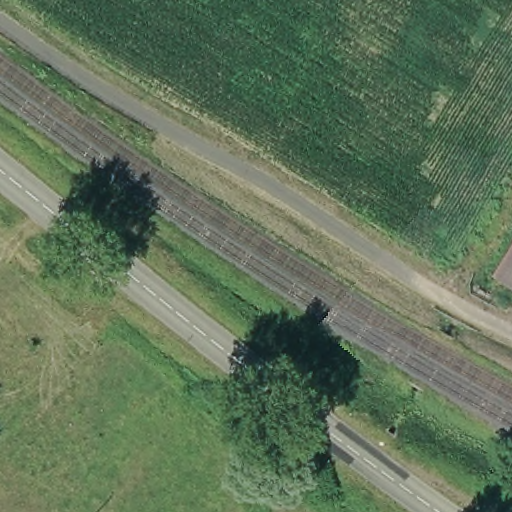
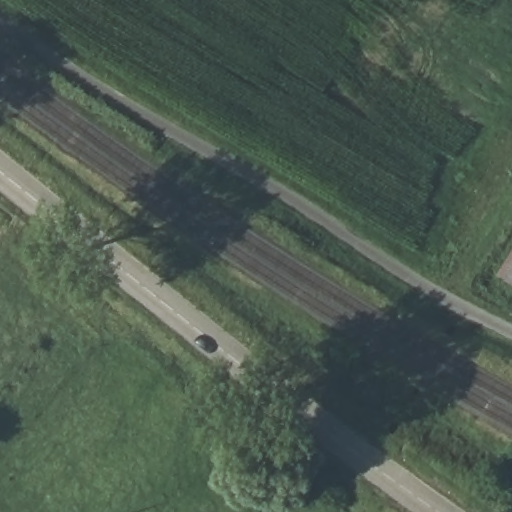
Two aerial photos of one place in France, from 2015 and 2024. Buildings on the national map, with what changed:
unchanged [(512,251),(512,290),(495,280),(512,251)]

